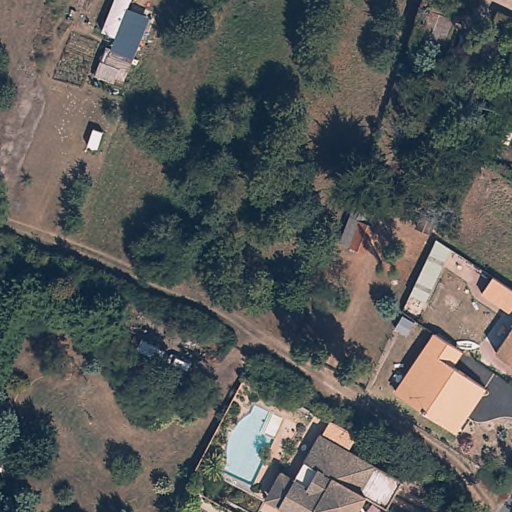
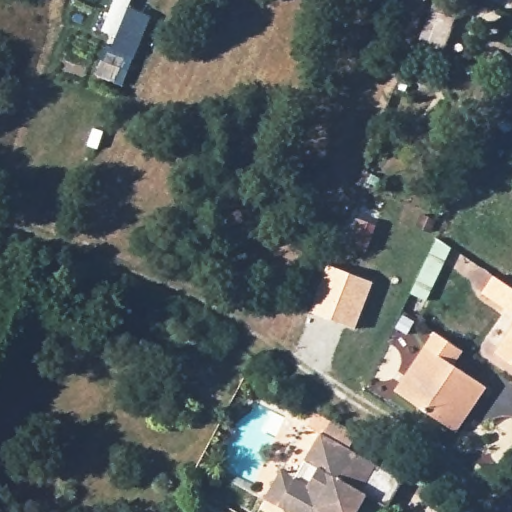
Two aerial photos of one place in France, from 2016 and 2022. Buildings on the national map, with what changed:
unchanged [(432,45),(432,43),(422,39),(432,10),(436,2),(459,8),(456,18),(444,49),(432,45)]
unchanged [(356,202),(361,190),(362,190),(366,192),(362,204),(356,219),(363,222),(368,208),(380,213),(375,227),(366,252),(340,241),(356,202)]
unchanged [(434,231),(420,224),(426,211),(440,218),(434,231)]
new [(328,265),(372,282),(356,330),(309,313),(328,265)]
unchanged [(512,280),(512,304),(490,290),(501,272),(512,280)]
unchanged [(457,358),(490,380),(462,425),(401,387),(440,327),(460,340),(466,344),(457,358)]
unchanged [(512,337),(512,349),(507,345),(512,337)]
unchanged [(364,512),(306,512),(281,497),(268,490),(283,462),(296,469),(300,471),(310,454),(306,452),(321,424),(399,467),(384,495),(367,486),(358,503),(366,508),(364,512)]

